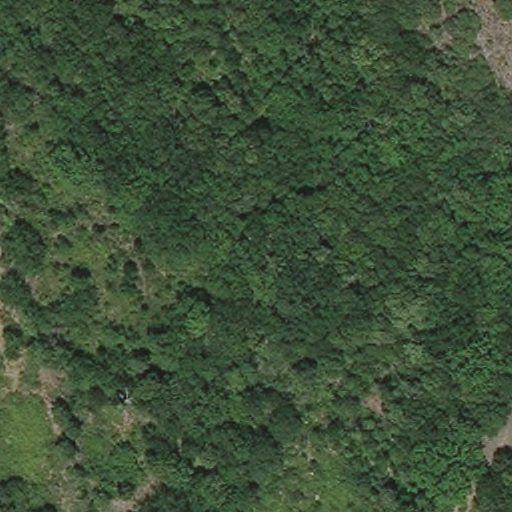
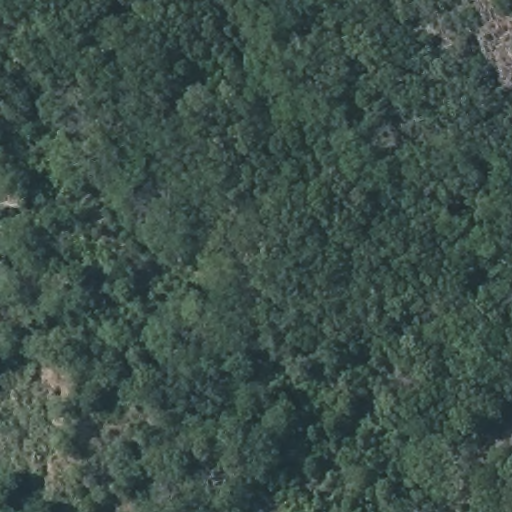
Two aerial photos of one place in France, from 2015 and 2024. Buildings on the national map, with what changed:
[]

